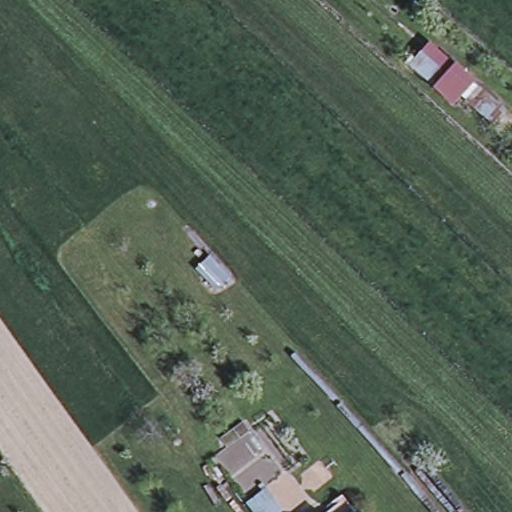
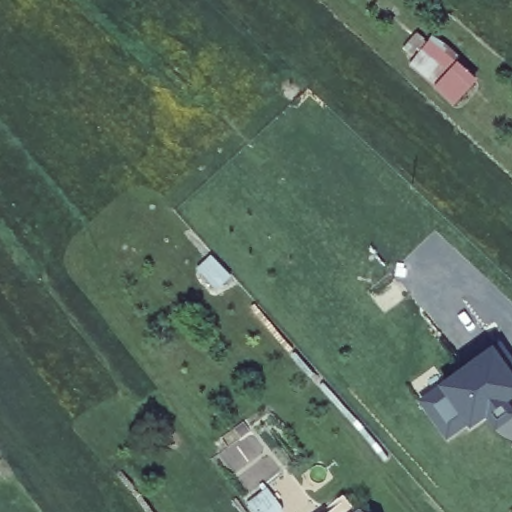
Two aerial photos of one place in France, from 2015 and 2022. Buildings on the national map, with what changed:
unchanged [(473,112),(461,102),(455,109),(433,89),(410,69),(427,50),(416,41),(408,34),(415,25),(456,61),(477,80),(471,87),(485,100),(473,112)]
unchanged [(216,295),(194,272),(204,263),(212,256),(233,279),(216,295)]
new [(486,415),(471,426),(468,422),(448,437),(422,401),(447,383),(500,345),(512,361),(512,397),(506,401),(512,409),(512,417),(497,429),(486,415)]
unchanged [(254,512),(247,503),(264,490),(276,480),(297,505),(287,512),(254,512)]
unchanged [(352,512),(326,512),(343,500),(352,512)]

